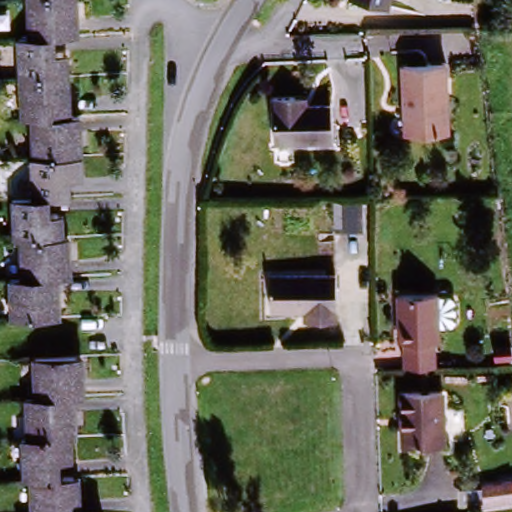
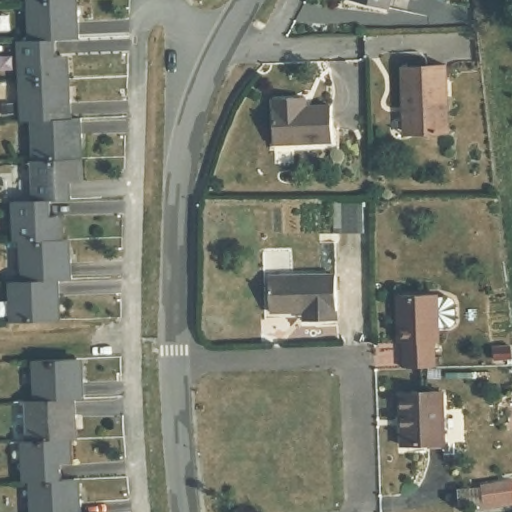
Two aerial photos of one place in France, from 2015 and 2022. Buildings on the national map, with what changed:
unchanged [(71,2),(26,4),(26,0),(71,0),(71,2)]
unchanged [(386,11),(348,2),(348,0),(388,0),(386,11)]
unchanged [(60,42),(57,43),(28,44),(26,4),(71,2),(72,21),(77,21),(78,42),(60,42)]
unchanged [(17,45),(28,44),(57,43),(58,60),(63,67),(63,83),(24,84),(19,84),(17,45)]
unchanged [(407,139),(406,73),(444,73),(449,73),(449,100),(449,139),(407,139)]
unchanged [(64,122),(63,122),(58,122),(49,123),(43,123),(38,123),(36,123),(33,124),(21,124),(19,84),(24,84),(63,83),(64,102),(69,102),(70,122),(64,122)]
unchanged [(335,150),(276,154),(274,109),(296,108),(306,107),(306,116),(333,115),(335,150)]
unchanged [(79,142),(79,161),(74,161),(73,161),(59,162),(49,163),(38,163),(37,163),(35,163),(33,124),(36,123),(38,123),(43,123),(49,123),(58,122),(63,122),(64,122),(70,122),(80,122),(83,122),(83,142),(79,142)]
unchanged [(53,202),(32,204),(29,164),(35,163),(37,163),(38,163),(49,163),(59,162),(73,161),(74,174),(74,181),(70,182),(71,201),(53,202)]
unchanged [(24,244),(21,244),(20,244),(14,245),(13,205),(32,204),(53,202),(53,222),(58,222),(59,243),(24,244)]
unchanged [(65,242),(66,262),(70,261),(71,282),(58,282),(28,284),(24,284),(23,284),(21,244),(24,244),(59,243),(65,242)]
unchanged [(304,316),(271,317),(270,282),(335,281),(336,326),(314,326),(304,326),(304,316)]
unchanged [(10,285),(23,284),(24,284),(28,284),(58,282),(59,302),(56,302),(57,322),(31,324),(12,325),(10,285)]
unchanged [(404,373),(404,357),(404,349),(399,349),(398,302),(438,300),(438,303),(453,304),(456,308),(456,327),(450,332),(439,332),(439,348),(434,348),(434,372),(404,373)]
unchanged [(33,363),(71,361),(78,361),(79,381),(84,381),(85,400),(75,400),(35,402),(33,363)]
unchanged [(445,445),(403,446),(402,425),(406,425),(405,393),(444,392),(444,411),(445,445)]
unchanged [(73,440),(68,441),(33,443),(29,443),(26,403),(35,402),(75,400),(76,420),(72,420),(73,440)]
unchanged [(69,460),(64,461),(66,481),(43,482),(40,482),(32,483),(25,483),(23,444),(29,443),(33,443),(68,441),(69,460)]
unchanged [(512,479),(512,499),(490,501),(487,478),(512,479)]
unchanged [(43,482),(66,481),(76,480),(77,500),(81,500),(82,512),(33,512),(32,483),(40,482),(43,482)]

